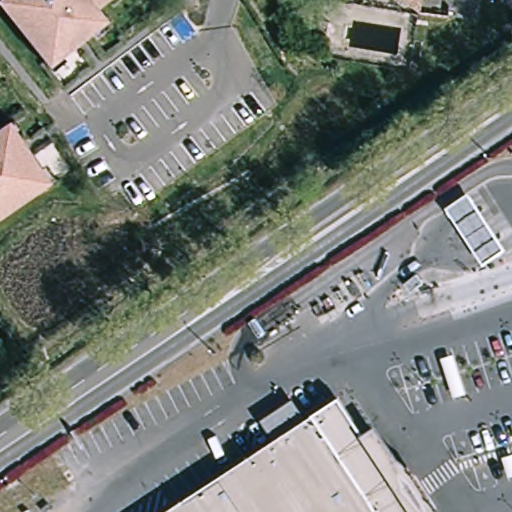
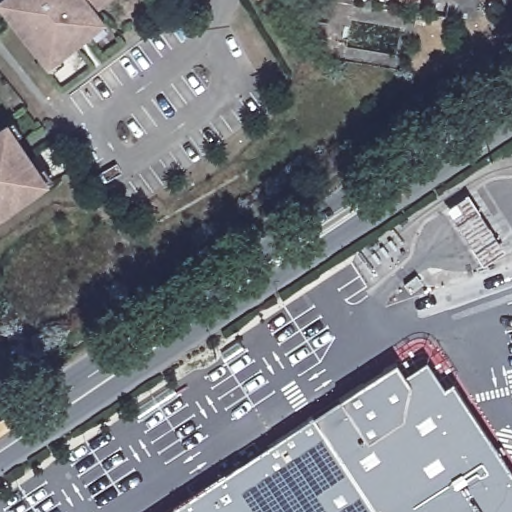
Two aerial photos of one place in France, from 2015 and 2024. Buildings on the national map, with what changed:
unchanged [(101,18),(93,24),(91,34),(60,57),(52,54),(45,59),(1,0),(108,0),(95,10),(101,18)]
unchanged [(4,134),(9,142),(19,144),(40,176),(37,184),(41,192),(0,219),(0,136),(4,134)]
unchanged [(502,247),(481,262),(444,205),(465,190),(502,247)]
unchanged [(416,275),(423,284),(410,293),(404,285),(416,275)]
demolished [(244,364),(233,369),(227,356),(238,352),(244,364)]
new [(346,412),(338,399),(395,361),(404,374),(425,361),(444,389),(453,383),(512,473),(512,512),(412,512),(346,412)]
unchanged [(336,401),(338,399),(346,412),(412,512),(167,512),(336,401)]

